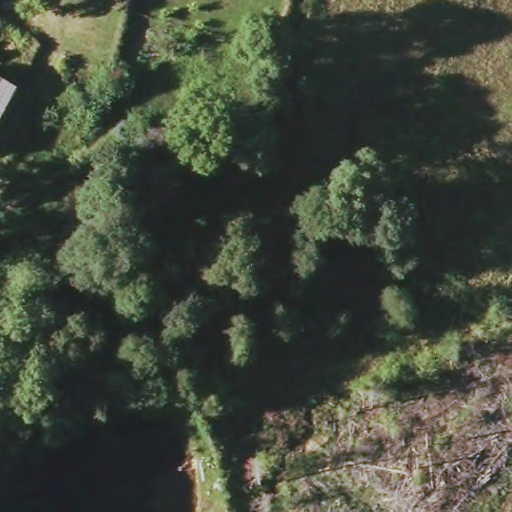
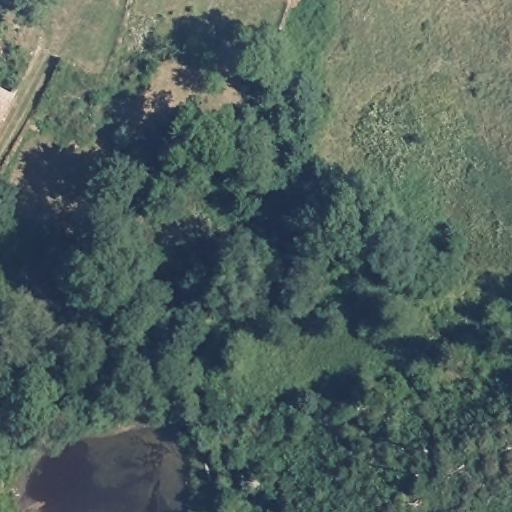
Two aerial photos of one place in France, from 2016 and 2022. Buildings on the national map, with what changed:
unchanged [(0,115),(0,91),(10,97),(0,115)]

